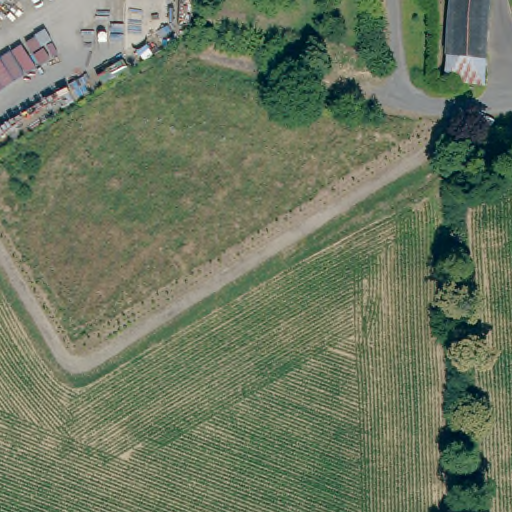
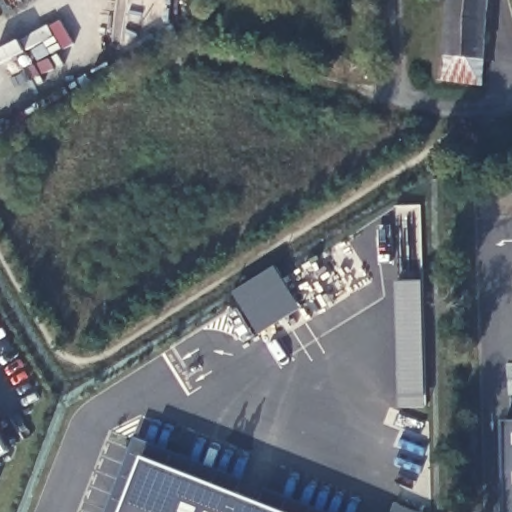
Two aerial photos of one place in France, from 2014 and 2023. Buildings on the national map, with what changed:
unchanged [(485,58),(447,54),(451,0),(489,0),(485,58)]
unchanged [(483,85),(444,81),(447,54),(485,58),(483,85)]
new [(277,265),(301,308),(260,333),(235,292),(277,265)]
new [(397,282),(424,281),(428,406),(401,406),(397,282)]
new [(512,512),(509,512),(507,419),(512,419),(512,512)]
new [(9,451),(0,457),(0,435),(9,451)]
new [(284,512),(125,512),(145,458),(284,512)]

